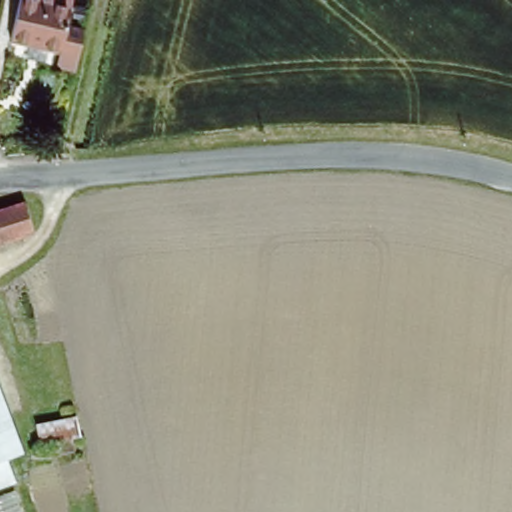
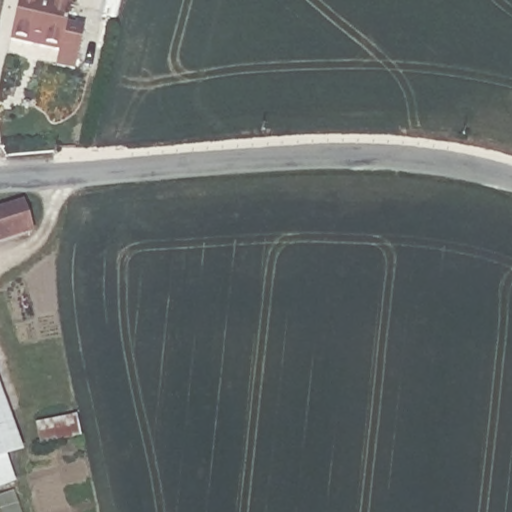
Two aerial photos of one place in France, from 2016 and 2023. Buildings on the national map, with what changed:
unchanged [(59,65),(62,51),(41,46),(43,39),(15,33),(22,0),(41,0),(71,6),(67,25),(84,30),(78,55),(75,69),(59,65)]
unchanged [(28,205),(38,233),(0,246),(0,215),(28,205)]
unchanged [(17,438),(20,446),(2,452),(0,453),(0,390),(17,438)]
unchanged [(0,489),(0,453),(2,452),(14,484),(0,489)]

